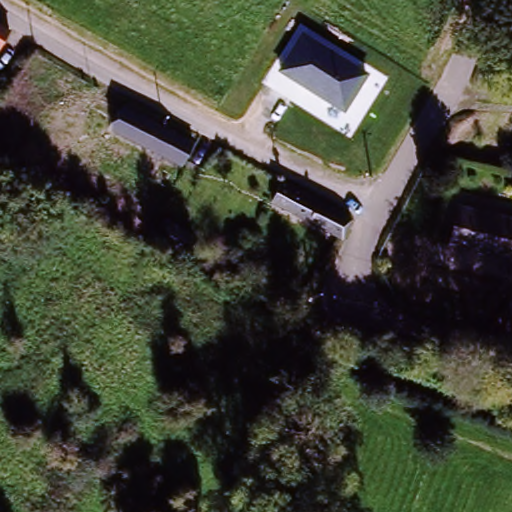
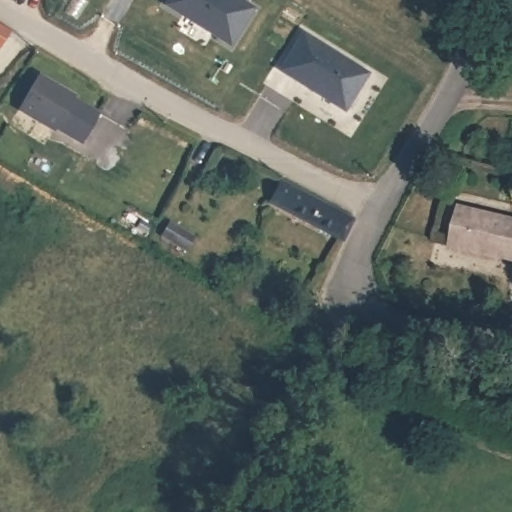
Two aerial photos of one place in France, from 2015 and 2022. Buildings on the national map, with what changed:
new [(241,0),(254,8),(232,45),(166,5),(169,0),(241,0)]
unchanged [(0,30),(0,27),(2,28),(0,30)]
unchanged [(366,76),(344,112),(280,72),(302,34),(366,76)]
new [(34,77),(74,97),(72,99),(99,113),(83,144),(56,130),(55,133),(16,112),(34,77)]
demolished [(182,169),(113,131),(125,110),(193,148),(182,169)]
unchanged [(343,247),(270,207),(282,184),(357,222),(343,247)]
unchanged [(452,248),(463,212),(512,226),(512,266),(452,248)]

